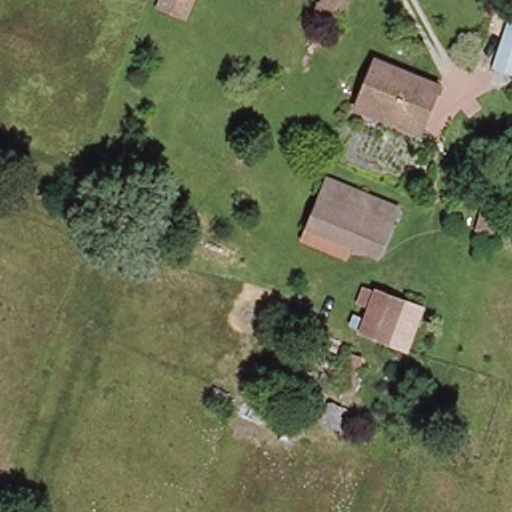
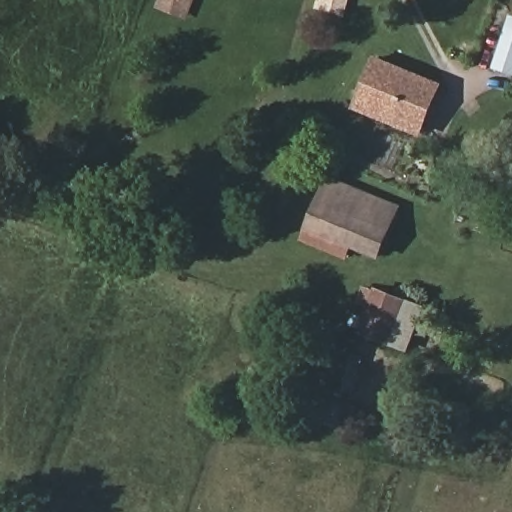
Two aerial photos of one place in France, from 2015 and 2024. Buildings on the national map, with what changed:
unchanged [(162,1),(163,0),(200,0),(194,11),(162,1)]
unchanged [(321,0),(351,0),(346,19),(318,11),(321,0)]
unchanged [(512,17),(512,74),(494,70),(512,17)]
unchanged [(356,111),(379,54),(443,79),(419,136),(356,111)]
unchanged [(314,230),(332,182),(402,208),(383,255),(314,230)]
unchanged [(370,340),(375,328),(360,319),(374,291),(416,309),(396,352),(370,340)]
unchanged [(355,397),(340,392),(354,353),(366,357),(355,397)]

